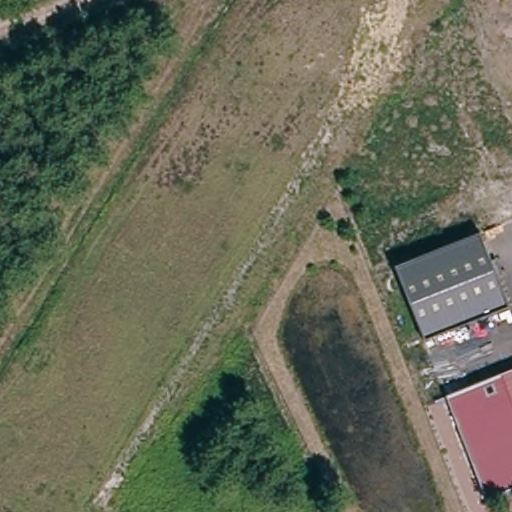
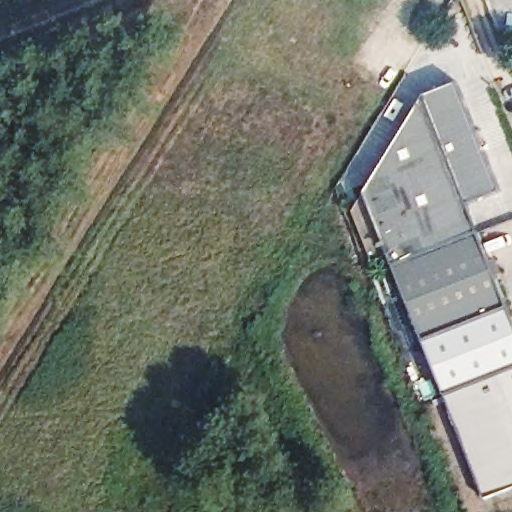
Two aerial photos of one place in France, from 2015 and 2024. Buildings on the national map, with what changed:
new [(397,265),(368,191),(426,97),(460,83),(502,190),(470,203),(480,233),(397,265)]
unchanged [(397,265),(480,233),(510,305),(426,339),(397,265)]
new [(426,339),(510,305),(512,312),(512,371),(448,397),(426,339)]
unchanged [(512,492),(486,503),(445,398),(512,371),(512,492)]

